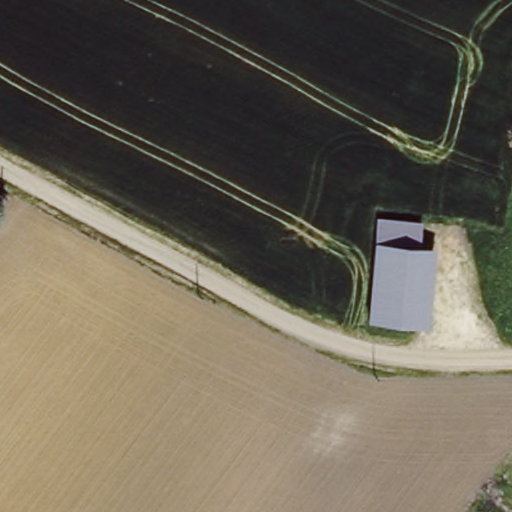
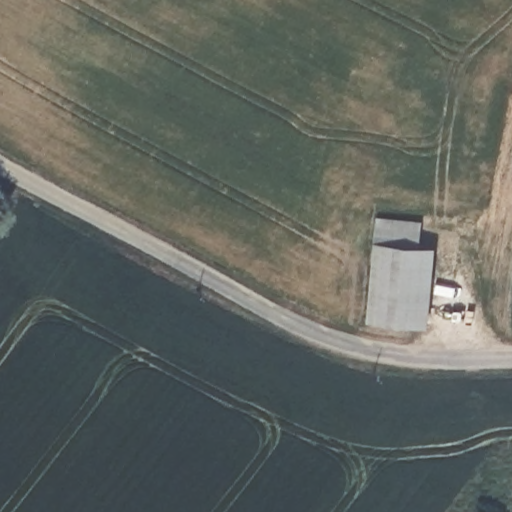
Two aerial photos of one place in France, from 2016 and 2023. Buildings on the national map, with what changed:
unchanged [(375,241),(435,248),(427,323),(367,316),(375,241)]

